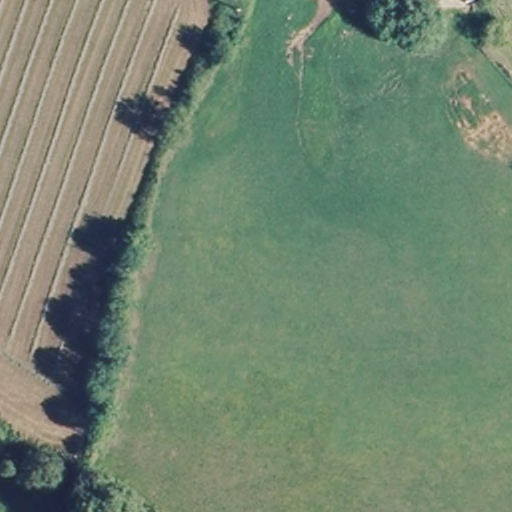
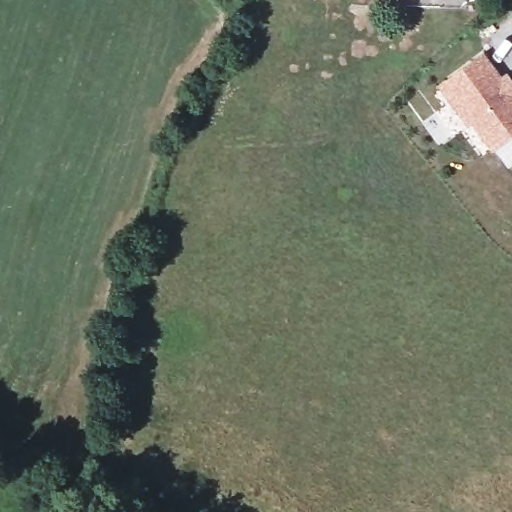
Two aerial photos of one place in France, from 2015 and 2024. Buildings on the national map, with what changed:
unchanged [(317,2),(310,0),(319,0),(317,2)]
new [(512,96),(512,137),(496,149),(476,122),(480,118),(452,82),(483,59),(512,96)]

